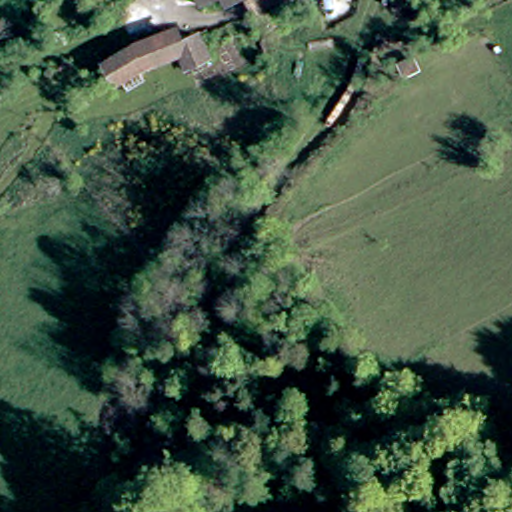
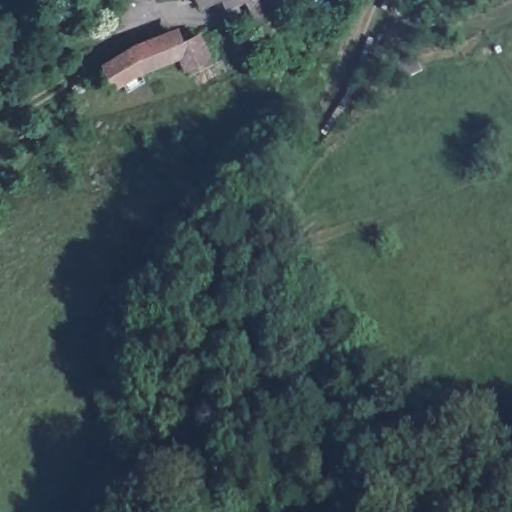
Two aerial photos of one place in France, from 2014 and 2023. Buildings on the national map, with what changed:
unchanged [(208,13),(202,0),(264,0),(233,11),(226,3),(208,13)]
unchanged [(190,67),(168,74),(148,84),(130,95),(119,75),(152,51),(183,43),(189,53),(207,45),(221,69),(197,79),(190,67)]

